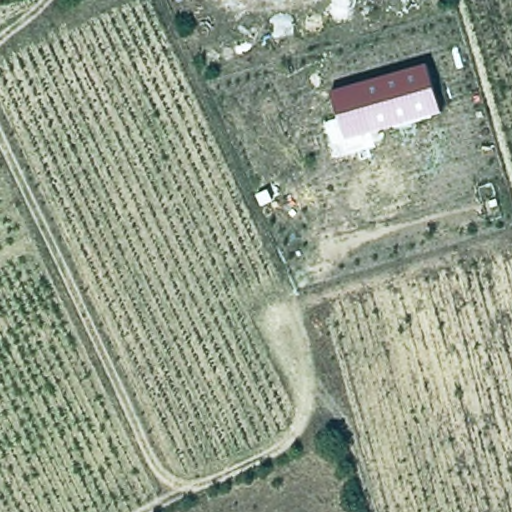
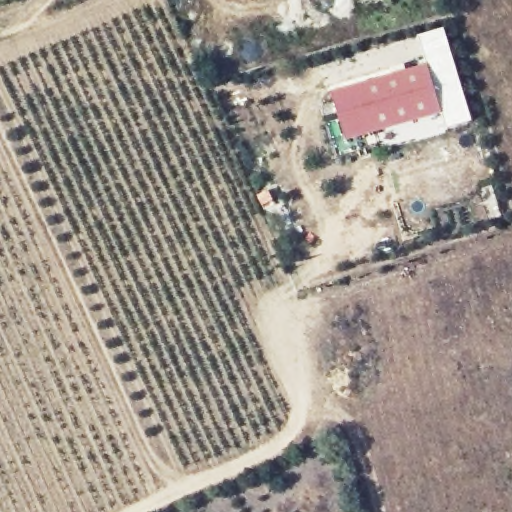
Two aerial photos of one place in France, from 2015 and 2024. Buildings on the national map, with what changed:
unchanged [(427,63),(441,115),(347,141),(332,91),(427,63)]

